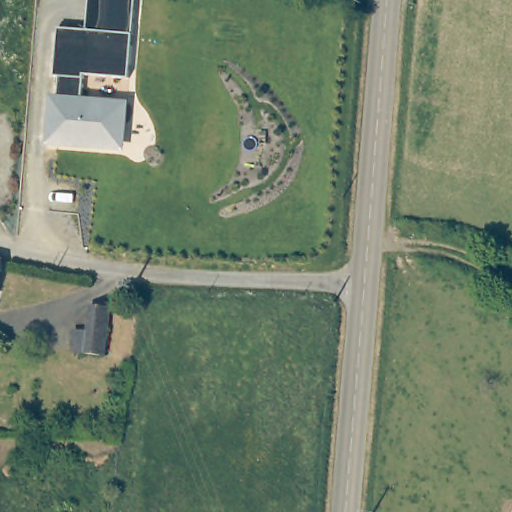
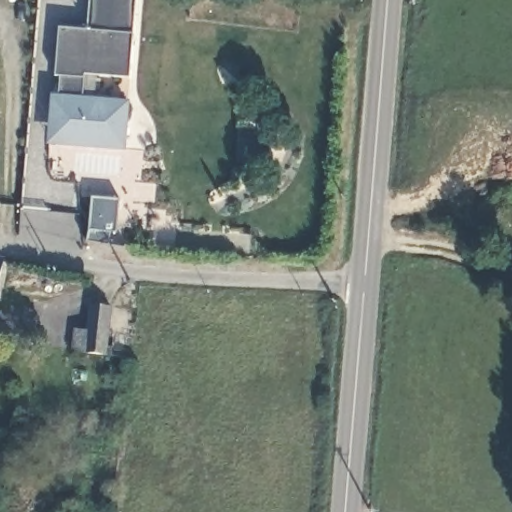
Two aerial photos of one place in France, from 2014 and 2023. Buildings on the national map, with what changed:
unchanged [(51,93),(65,94),(66,82),(57,81),(59,72),(54,71),(59,22),(86,25),(89,0),(135,0),(128,75),(84,71),(81,96),(125,100),(124,120),(120,120),(117,145),(87,141),(47,137),(49,120),(51,93)]
new [(88,231),(91,201),(115,203),(112,234),(107,234),(105,247),(86,241),(88,231)]
unchanged [(0,293),(0,260),(7,261),(0,293)]
unchanged [(114,307),(109,358),(77,354),(79,330),(94,331),(95,305),(114,307)]

